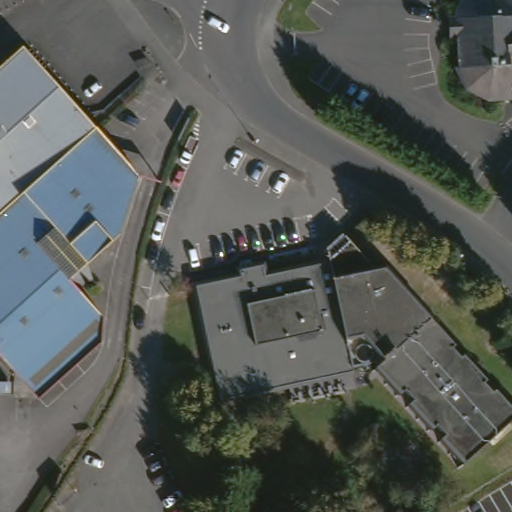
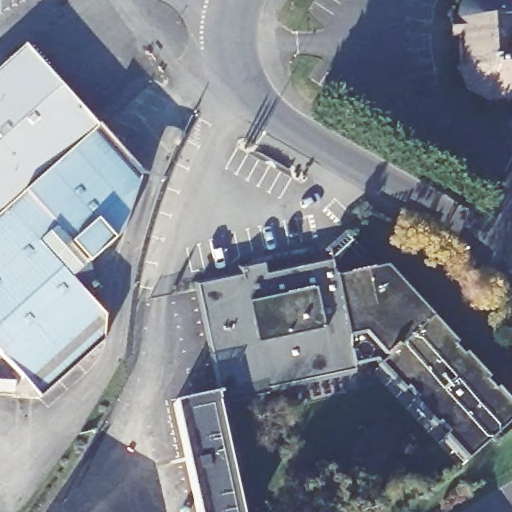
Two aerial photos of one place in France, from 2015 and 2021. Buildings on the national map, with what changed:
unchanged [(473,86),(461,66),(467,65),(466,36),(456,37),(456,16),(461,16),(461,14),(462,10),(462,8),(463,5),(465,3),(466,0),(512,0),(512,99),(496,100),(473,86)]
unchanged [(0,211),(0,71),(29,45),(52,68),(63,90),(99,122),(0,211)]
unchanged [(103,281),(95,288),(90,282),(75,275),(109,312),(107,335),(44,394),(0,345),(0,211),(99,122),(143,170),(128,226),(93,258),(97,275),(103,281)]
unchanged [(205,281),(247,272),(245,265),(269,260),(271,270),(337,256),(334,244),(352,230),(384,265),(393,263),(463,340),(460,342),(468,352),(472,349),(494,375),(489,378),(499,388),(503,385),(512,396),(512,420),(470,458),(447,432),(451,429),(442,419),(438,422),(415,397),(420,395),(412,385),(407,387),(383,360),(228,392),(205,281)]
new [(175,403),(216,395),(239,512),(196,512),(175,403)]

